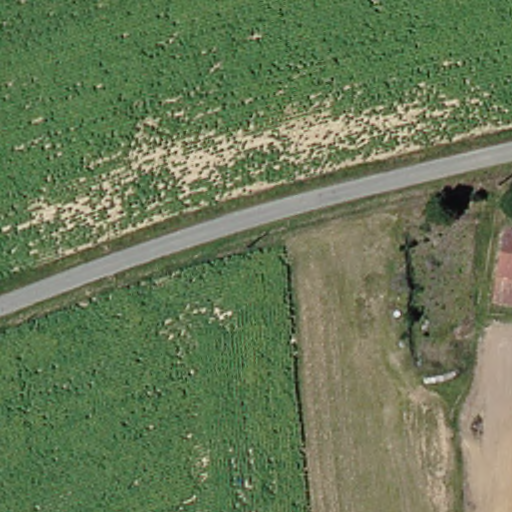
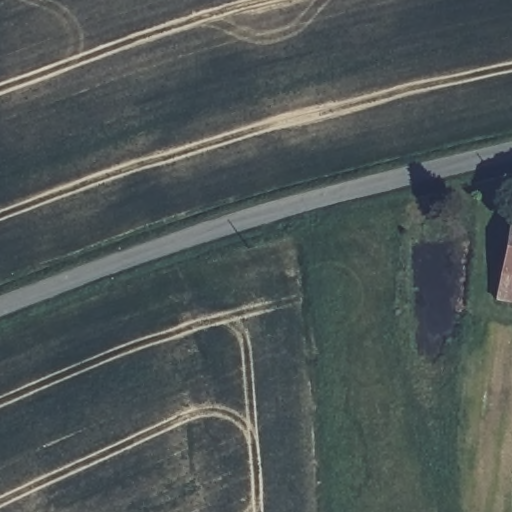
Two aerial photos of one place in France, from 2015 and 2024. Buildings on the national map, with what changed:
unchanged [(498,233),(512,236),(512,303),(487,299),(498,233)]

